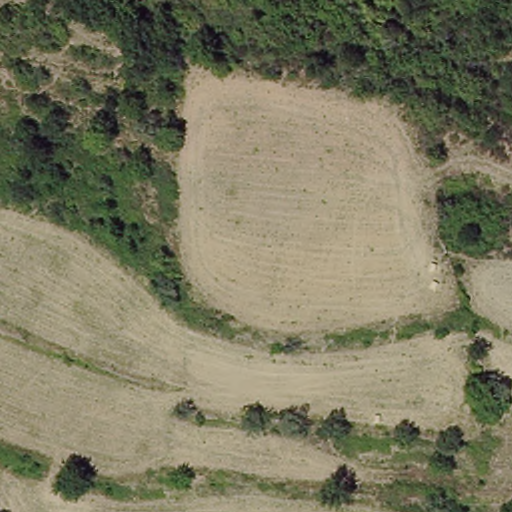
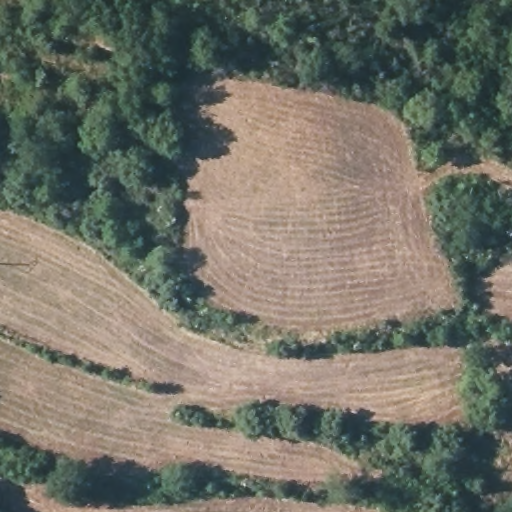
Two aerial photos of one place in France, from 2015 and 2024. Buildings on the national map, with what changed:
[]

